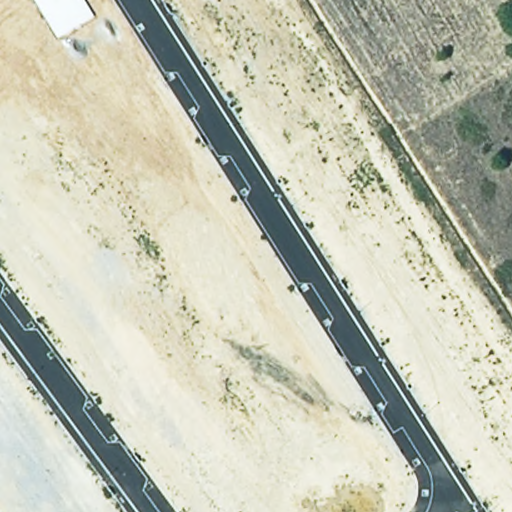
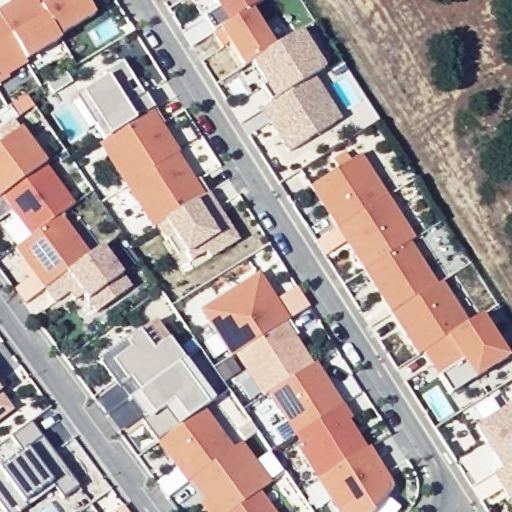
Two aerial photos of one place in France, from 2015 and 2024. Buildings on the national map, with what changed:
new [(0,22),(0,9),(15,0),(34,0),(39,9),(44,16),(57,40),(59,42),(25,62),(10,37),(0,22)]
new [(44,16),(39,9),(34,0),(84,0),(94,17),(57,40),(44,16)]
new [(260,2),(250,9),(225,25),(211,34),(202,19),(215,11),(208,0),(263,0),(260,2)]
new [(274,47),(250,62),(242,67),(227,44),(220,48),(211,34),(225,25),(250,9),(274,47)]
new [(25,62),(25,65),(7,77),(7,79),(0,83),(0,22),(10,37),(25,62)]
new [(274,47),(300,32),(324,70),(314,76),(274,101),(270,103),(260,89),(264,86),(250,62),(274,47)]
new [(80,94),(107,78),(104,73),(122,62),(152,110),(133,122),(107,137),(80,94)]
new [(270,103),(274,101),(314,76),(340,120),(287,152),(260,111),(270,103)]
new [(124,186),(98,144),(107,137),(133,122),(152,110),(177,152),(124,186)]
new [(0,144),(21,130),(45,164),(0,196),(0,144)]
new [(194,202),(162,222),(157,227),(151,230),(124,186),(177,152),(204,197),(194,202)]
new [(360,156),(414,239),(409,242),(436,285),(442,281),(470,323),(481,317),(507,358),(473,380),(449,396),(420,353),(416,356),(309,187),(360,156)]
new [(10,212),(0,219),(0,196),(45,164),(74,205),(60,215),(29,237),(10,212)]
new [(237,241),(209,258),(205,254),(189,263),(184,254),(176,257),(157,227),(162,222),(194,202),(204,197),(209,194),(237,241)]
new [(12,250),(29,237),(60,215),(89,255),(69,270),(44,287),(42,288),(12,250)]
new [(69,270),(89,255),(101,246),(122,276),(130,287),(94,313),(82,296),(72,301),(67,294),(54,303),(44,287),(69,270)]
new [(293,435),(267,393),(260,397),(233,355),(227,358),(197,311),(259,274),(352,419),(349,421),(365,448),(369,447),(392,486),(390,492),(373,512),(335,512),(289,438),(293,435)]
new [(96,362),(155,321),(214,402),(157,445),(96,362)]
new [(0,394),(12,411),(0,419),(0,394)]
new [(500,468),(473,425),(512,400),(512,505),(492,473),(500,468)]
new [(200,502),(157,445),(203,411),(232,450),(242,444),(270,483),(259,492),(274,512),(202,512),(197,505),(200,502)]
new [(63,499),(54,487),(27,506),(19,512),(5,512),(0,505),(0,469),(25,450),(13,436),(30,422),(78,488),(63,499)]

